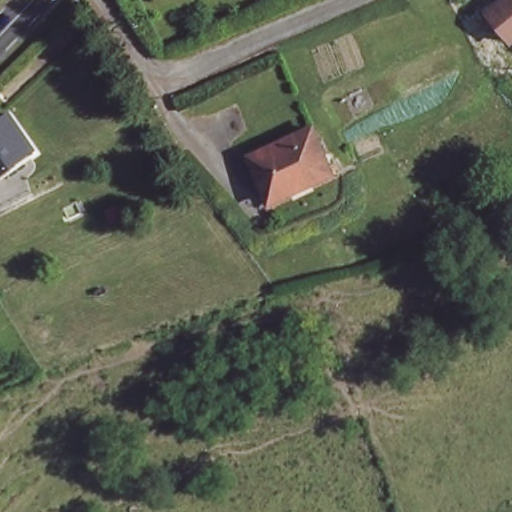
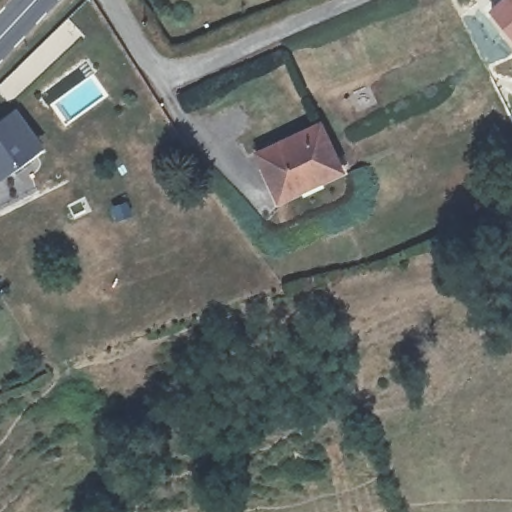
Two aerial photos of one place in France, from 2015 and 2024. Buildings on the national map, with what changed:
unchanged [(488,0),(512,0),(512,42),(484,3),(488,0)]
unchanged [(44,146),(20,163),(14,157),(0,167),(0,118),(15,107),(44,146)]
unchanged [(340,162),(279,190),(259,147),(319,118),(340,162)]

